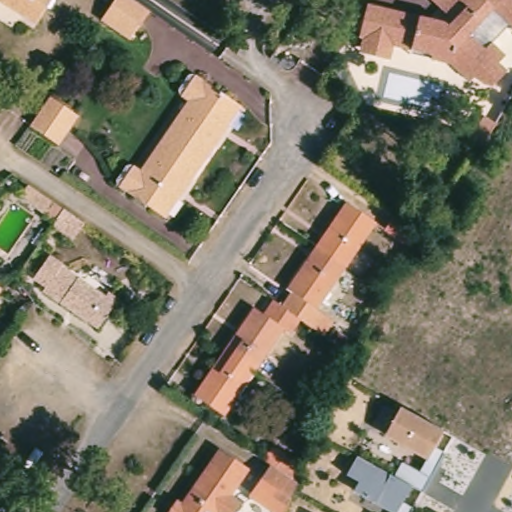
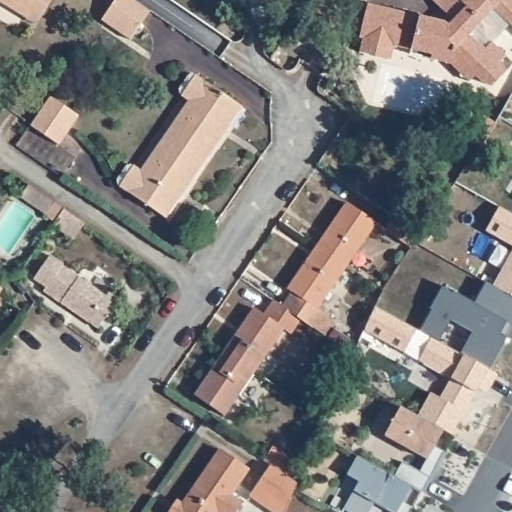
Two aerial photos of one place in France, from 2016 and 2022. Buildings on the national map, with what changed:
unchanged [(17,19),(0,8),(0,0),(48,0),(31,28),(17,19)]
unchanged [(145,15),(125,44),(97,24),(112,0),(124,0),(145,15)]
unchanged [(452,72),(449,69),(425,63),(407,59),(407,55),(392,51),(387,65),(358,59),(361,45),(355,44),(361,18),(363,9),(434,27),(442,17),(437,11),(448,0),(511,0),(512,0),(512,34),(490,12),(466,37),(479,52),(487,44),(502,60),(494,67),(502,76),(488,89),(476,85),(472,79),(465,86),(452,72)]
unchanged [(204,163),(166,136),(189,100),(179,92),(191,74),(241,109),(227,130),(215,147),(204,163)]
unchanged [(77,116),(59,144),(31,125),(50,96),(77,116)]
unchanged [(460,138),(463,133),(475,117),(486,125),(476,141),(472,146),(460,138)]
unchanged [(166,220),(114,185),(127,165),(140,173),(166,136),(204,163),(191,180),(180,198),(166,220)]
unchanged [(346,204),(375,224),(346,267),(316,247),(346,204)]
new [(512,214),(512,246),(485,231),(499,207),(512,214)]
unchanged [(82,223),(70,241),(50,226),(62,209),(82,223)]
unchanged [(416,232),(407,247),(386,232),(395,218),(416,232)]
unchanged [(288,290),(287,289),(316,247),(346,267),(317,308),(322,312),(311,327),(299,320),(278,305),(288,290)]
new [(492,286),(512,251),(512,297),(492,286)]
unchanged [(62,264),(60,267),(105,297),(109,292),(119,299),(97,328),(42,291),(45,286),(35,279),(51,256),(62,264)]
new [(512,297),(512,325),(507,323),(501,334),(507,337),(488,370),(460,354),(472,332),(451,320),(438,342),(420,332),(432,310),(430,309),(442,286),(474,303),(486,283),(512,297)]
unchanged [(254,309),(261,314),(271,300),(278,305),(299,320),(290,334),(283,330),(252,372),(225,353),(254,309)]
new [(375,307),(417,330),(404,353),(363,331),(375,307)]
new [(487,369),(451,432),(443,429),(417,416),(430,393),(440,399),(451,379),(418,361),(431,338),(487,369)]
unchanged [(252,372),(224,415),(196,395),(225,353),(252,372)]
new [(496,374),(486,392),(477,387),(487,369),(496,374)]
unchanged [(400,406),(417,416),(443,429),(435,444),(445,451),(423,491),(413,485),(404,502),(413,507),(411,512),(390,512),(352,493),(357,484),(345,476),(357,455),(393,475),(401,463),(418,473),(426,459),(385,436),(400,406)]
unchanged [(177,510),(216,454),(243,474),(224,502),(237,510),(235,512),(167,512),(172,506),(177,510)]
unchanged [(268,512),(251,502),(269,471),(264,468),(272,455),(290,466),(282,479),(296,489),(285,512),(268,512)]

